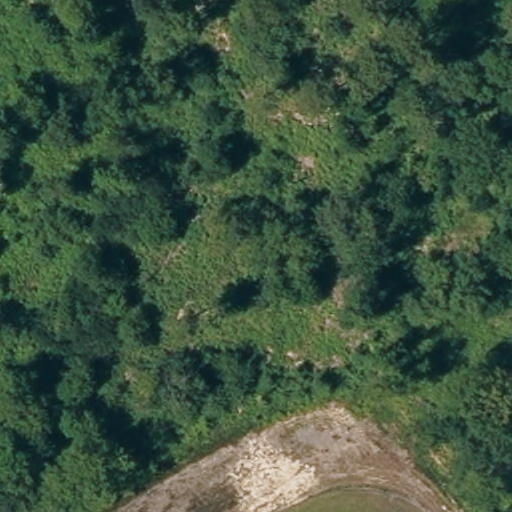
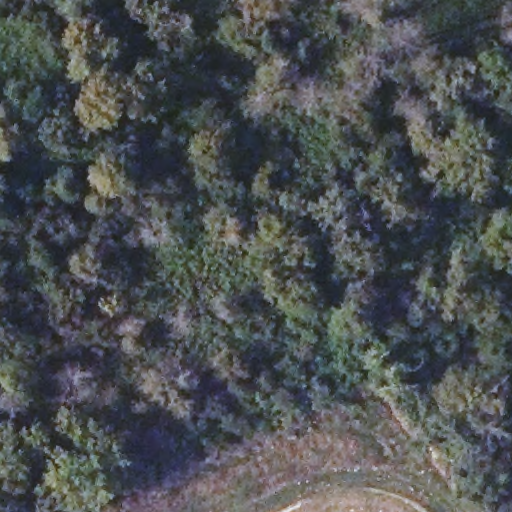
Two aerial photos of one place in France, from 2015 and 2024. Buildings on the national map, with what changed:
[]

